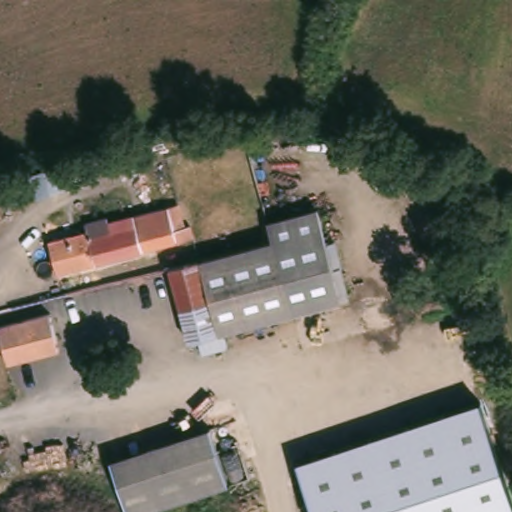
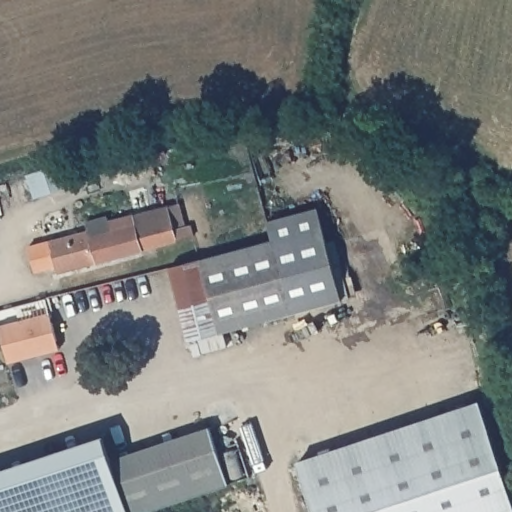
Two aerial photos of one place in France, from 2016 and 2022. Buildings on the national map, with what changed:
unchanged [(66,182),(30,192),(22,170),(58,160),(66,182)]
unchanged [(51,241),(93,229),(88,213),(110,206),(114,215),(177,196),(189,235),(61,270),(51,241)]
unchanged [(313,208),(341,300),(185,343),(164,270),(201,260),(269,240),(264,223),(313,208)]
unchanged [(15,361),(4,325),(55,311),(65,347),(15,361)]
unchanged [(302,463),(485,396),(512,469),(512,512),(320,512),(302,463)]
unchanged [(148,512),(113,512),(97,467),(196,431),(202,449),(224,441),(237,480),(148,512)]
new [(102,436),(110,452),(114,461),(97,467),(113,512),(0,512),(0,470),(102,436)]

